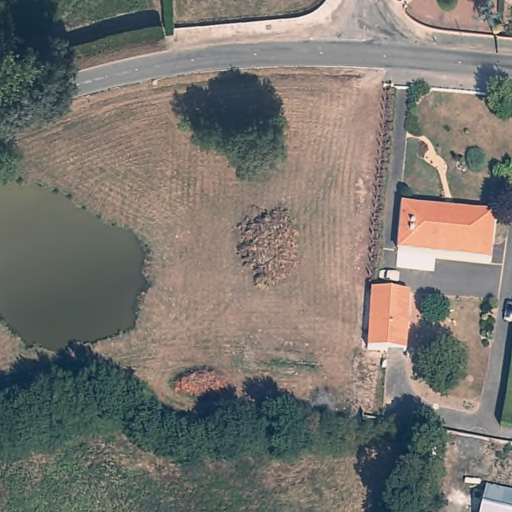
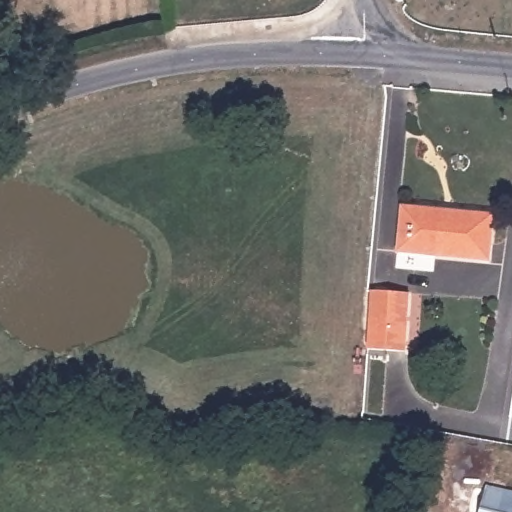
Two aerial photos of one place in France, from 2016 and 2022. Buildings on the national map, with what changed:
unchanged [(493,222),(488,266),(397,256),(401,214),(493,222)]
unchanged [(374,299),(410,303),(405,360),(370,357),(374,299)]
unchanged [(512,512),(488,512),(494,488),(512,492),(512,512)]

